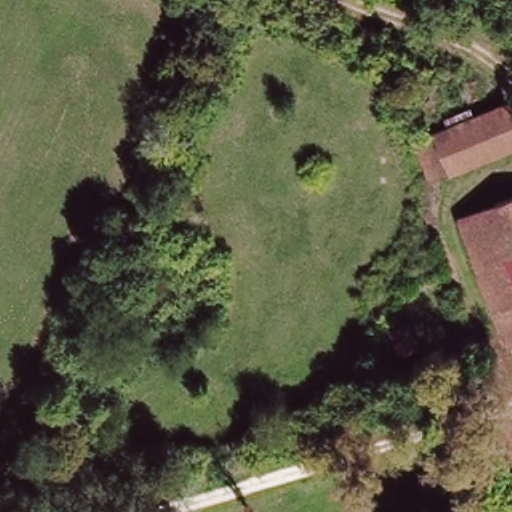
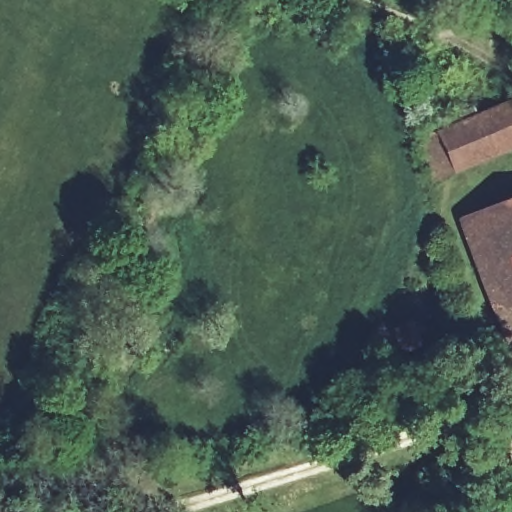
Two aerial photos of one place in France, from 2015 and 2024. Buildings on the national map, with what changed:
unchanged [(439,126),(508,100),(512,109),(512,144),(455,166),(441,173),(438,187),(418,135),(425,132),(439,126)]
unchanged [(463,219),(512,197),(512,304),(500,308),(463,219)]
unchanged [(512,304),(512,337),(500,308),(512,304)]
unchanged [(412,333),(405,315),(423,308),(430,326),(412,333)]

